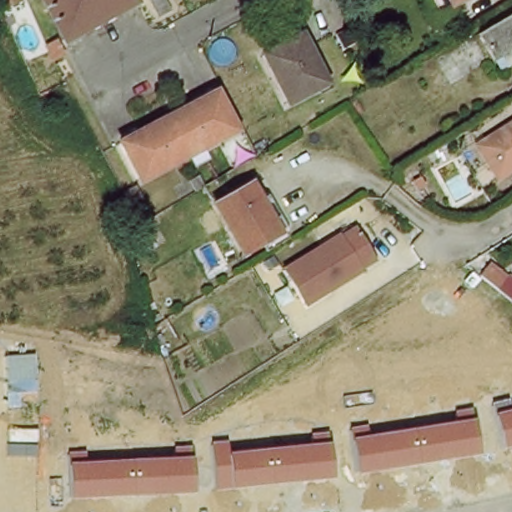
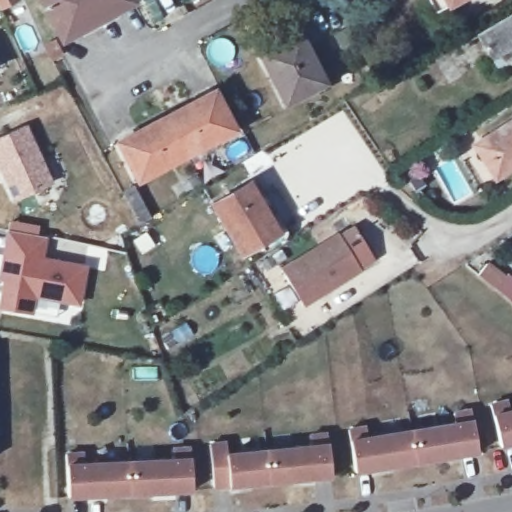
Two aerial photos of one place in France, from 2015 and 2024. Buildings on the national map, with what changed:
unchanged [(43,0),(132,0),(65,37),(43,0)]
unchanged [(437,0),(456,0),(441,7),(437,0)]
unchanged [(472,37),(512,14),(512,48),(488,64),(472,37)]
unchanged [(319,61),(312,65),(320,82),(286,100),(261,46),(301,28),(319,61)]
unchanged [(236,129),(139,176),(119,137),(217,90),(236,129)]
unchanged [(492,182),(484,170),(482,167),(489,163),(477,145),(512,121),(512,169),(492,182)]
new [(15,202),(0,172),(0,136),(26,125),(54,184),(15,202)]
unchanged [(273,225),(244,243),(221,202),(251,185),(273,225)]
unchanged [(149,223),(131,194),(142,187),(161,216),(149,223)]
unchanged [(295,299),(288,287),(278,270),(336,235),(337,237),(352,228),(360,242),(371,258),(356,267),(357,270),(325,290),(299,305),(295,299)]
new [(80,306),(37,299),(35,316),(0,310),(0,301),(3,283),(0,283),(0,267),(6,232),(45,236),(41,259),(87,267),(80,306)]
unchanged [(499,263),(512,274),(512,282),(507,289),(489,275),(499,263)]
unchanged [(512,406),(512,446),(504,447),(494,406),(511,402),(512,406)]
unchanged [(457,425),(456,414),(473,411),(480,453),(418,463),(413,431),(457,425)]
unchanged [(368,428),(369,438),(413,431),(418,463),(357,472),(350,430),(368,428)]
unchanged [(311,447),(310,436),(328,435),(332,477),(270,483),(267,451),(311,447)]
unchanged [(227,443),(228,455),(267,451),(270,483),(215,488),(210,445),(227,443)]
unchanged [(173,461),(172,450),(190,450),(192,492),(130,495),(128,463),(173,461)]
unchanged [(83,454),(84,465),(128,463),(130,495),(67,497),(66,455),(83,454)]

